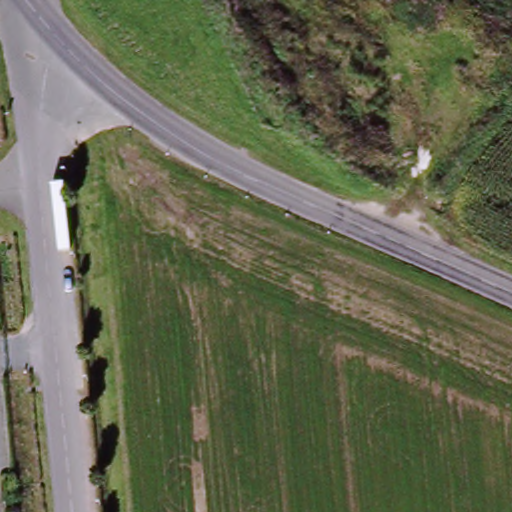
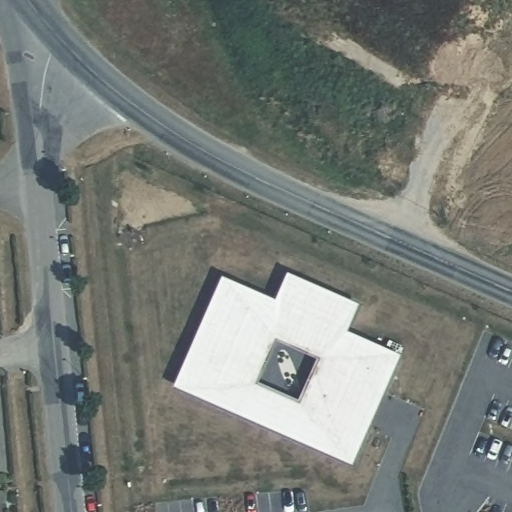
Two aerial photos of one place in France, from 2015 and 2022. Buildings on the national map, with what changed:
new [(277,299),(288,272),(362,304),(350,331),(404,356),(355,466),(174,388),(224,277),(277,299)]

